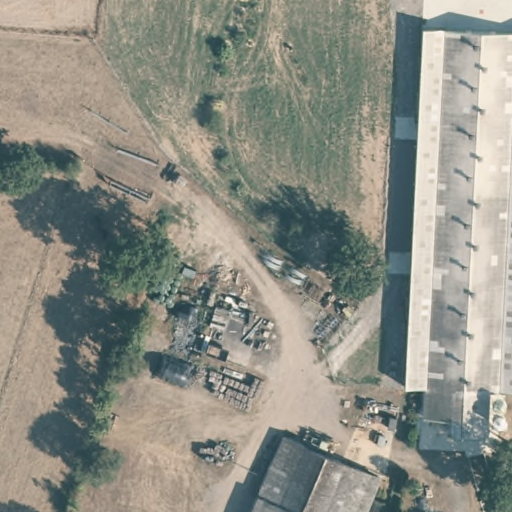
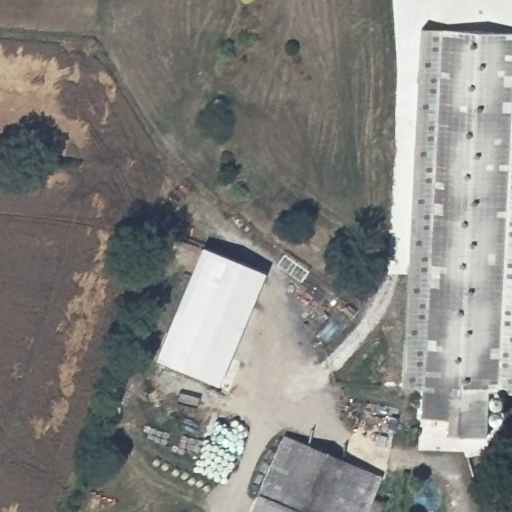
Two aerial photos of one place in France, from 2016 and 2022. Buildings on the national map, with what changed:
unchanged [(512,393),(489,390),(487,435),(449,432),(449,419),(424,416),(426,387),(408,386),(424,30),(512,34),(512,393)]
new [(216,386),(153,360),(200,247),(263,272),(216,386)]
unchanged [(320,512),(252,512),(282,435),(338,458),(320,512)]
unchanged [(379,475),(366,512),(320,512),(338,458),(379,475)]

